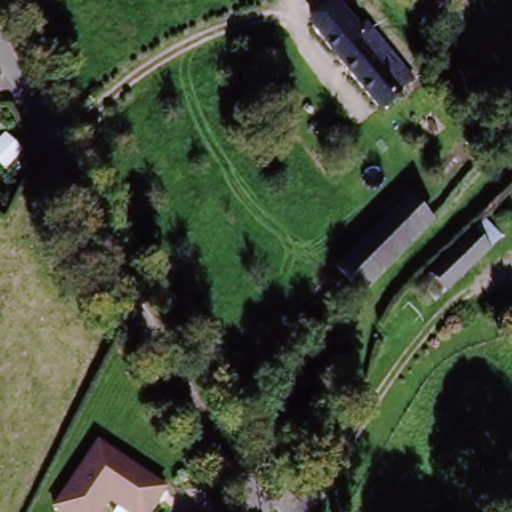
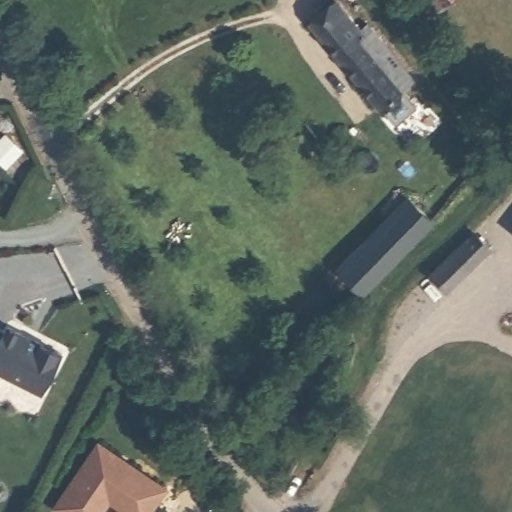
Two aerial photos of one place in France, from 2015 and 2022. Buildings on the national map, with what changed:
unchanged [(413,78),(406,85),(378,109),(305,24),(332,0),(334,0),(363,34),(369,28),(413,78)]
unchanged [(426,17),(414,0),(452,0),(426,17)]
unchanged [(404,204),(430,230),(358,296),(332,268),(404,204)]
unchanged [(495,252),(452,295),(433,274),(476,231),(495,252)]
new [(8,327),(21,334),(23,337),(34,343),(38,342),(64,355),(44,395),(0,374),(0,327),(7,330),(8,327)]
unchanged [(152,512),(112,512),(106,509),(104,512),(49,512),(48,511),(95,445),(166,491),(152,512)]

